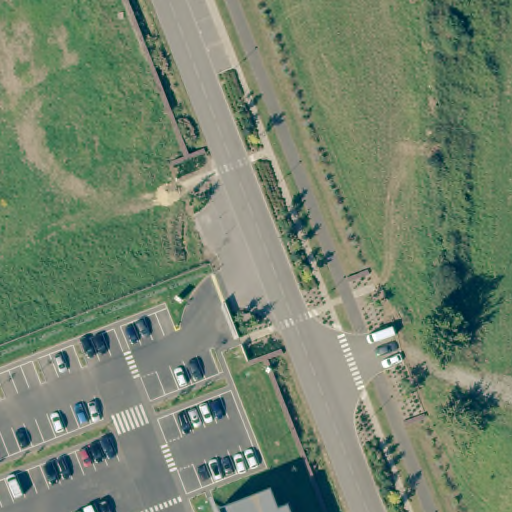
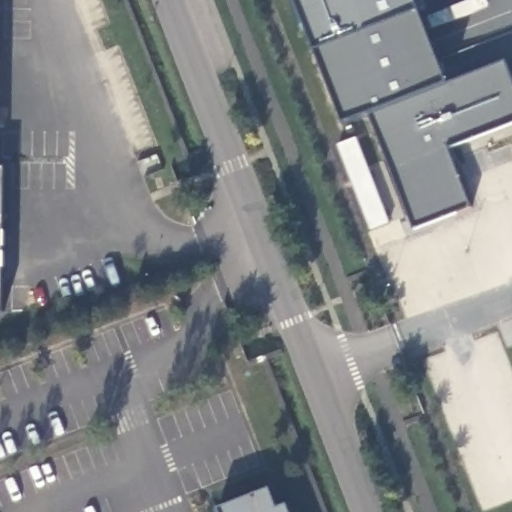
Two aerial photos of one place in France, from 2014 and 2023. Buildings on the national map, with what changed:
new [(448,86),(507,64),(512,79),(512,126),(448,149),(472,210),(415,232),(369,116),(345,124),(317,53),(420,12),(448,86)]
new [(3,313),(0,314),(0,169),(5,170),(3,313)]
unchanged [(220,511),(269,492),(277,510),(285,508),(287,512),(221,512),(220,511)]

